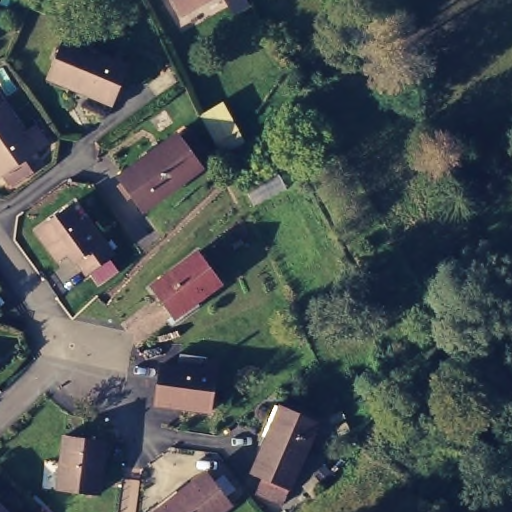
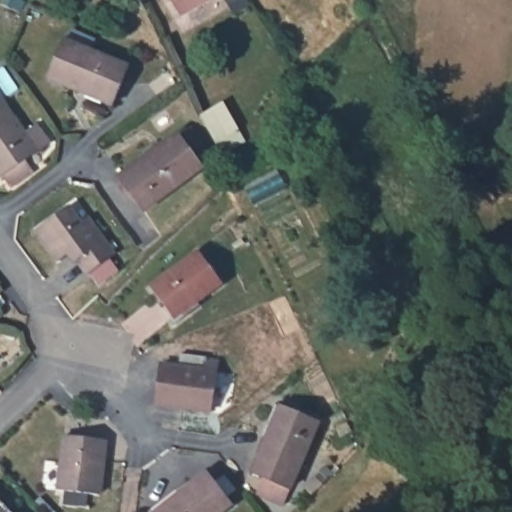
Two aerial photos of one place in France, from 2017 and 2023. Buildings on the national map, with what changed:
unchanged [(180,0),(187,0),(182,3),(180,0)]
unchanged [(66,34),(132,64),(118,95),(86,82),(84,87),(50,72),(66,34)]
unchanged [(12,184),(4,172),(0,175),(0,94),(38,148),(24,159),(32,170),(12,184)]
unchanged [(147,160),(144,157),(175,134),(201,170),(144,212),(121,180),(147,160)]
unchanged [(92,283),(86,275),(85,276),(68,252),(55,261),(32,230),(63,207),(75,224),(83,219),(111,257),(117,266),(92,283)]
unchanged [(169,311),(147,286),(192,246),(220,277),(192,302),(175,317),(169,311)]
unchanged [(2,300),(8,307),(4,311),(0,306),(0,301),(2,300)]
unchanged [(159,382),(161,364),(179,366),(181,352),(207,355),(207,357),(217,358),(216,370),(211,412),(163,407),(157,406),(159,382)]
unchanged [(282,504),(256,491),(265,475),(253,467),(271,432),(286,402),(293,407),(324,422),(282,504)]
unchanged [(54,486),(62,433),(78,436),(101,440),(100,446),(93,492),(54,486)]
unchanged [(235,506),(225,512),(151,512),(148,508),(177,487),(180,492),(209,471),(235,506)]
unchanged [(24,512),(0,512),(0,487),(24,512)]

